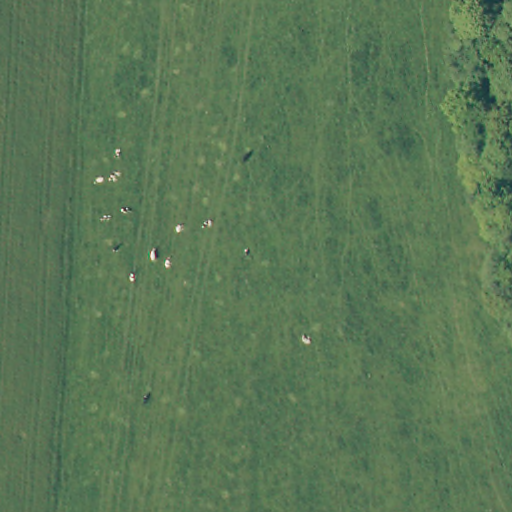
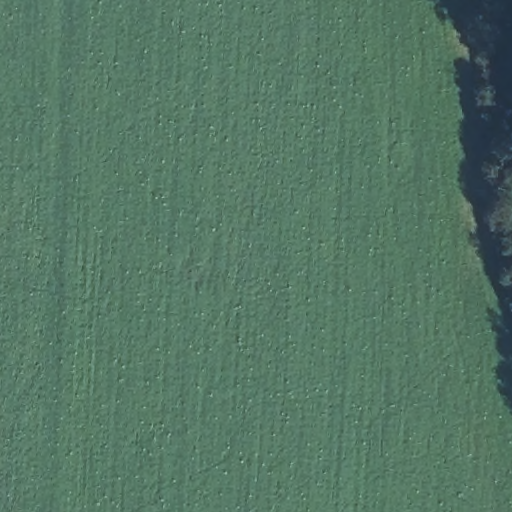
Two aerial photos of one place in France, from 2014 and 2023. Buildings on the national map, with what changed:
[]

